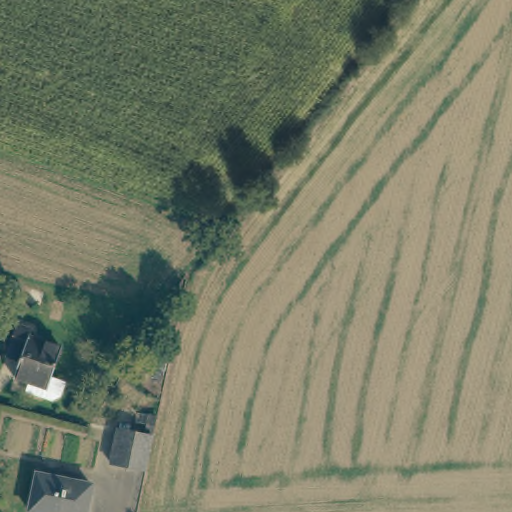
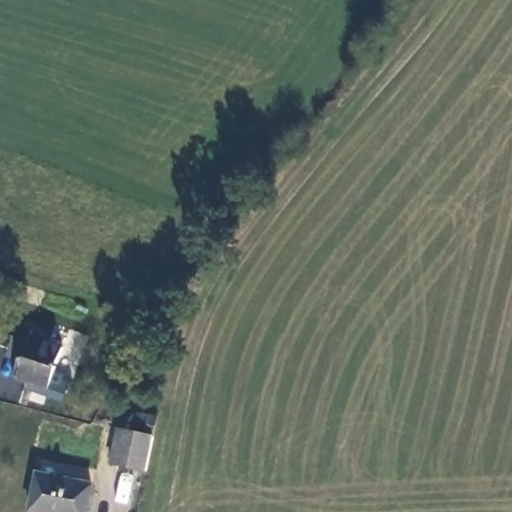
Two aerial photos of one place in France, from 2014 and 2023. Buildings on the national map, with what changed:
unchanged [(30,316),(6,309),(10,297),(32,303),(30,316)]
unchanged [(50,391),(15,379),(23,355),(10,350),(19,325),(36,330),(32,340),(62,349),(50,391)]
unchanged [(142,470),(110,462),(120,427),(152,435),(142,470)]
unchanged [(28,510),(38,471),(92,485),(85,512),(34,512),(28,510)]

